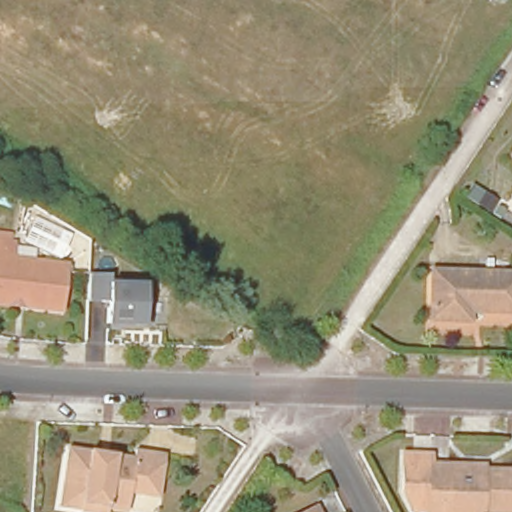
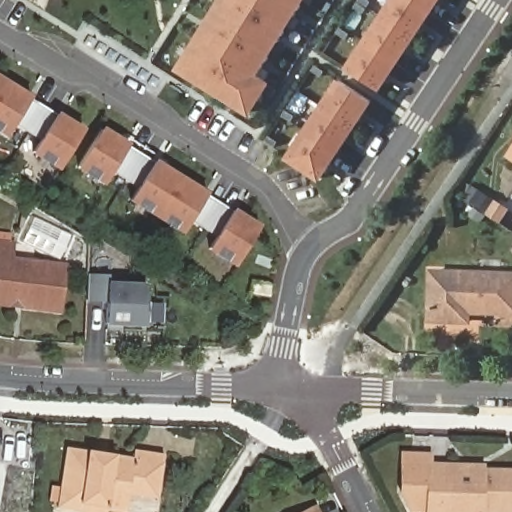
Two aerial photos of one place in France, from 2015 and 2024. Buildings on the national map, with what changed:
new [(258,74),(272,83),(250,117),(175,70),(220,0),(305,0),(258,74)]
new [(346,69),(392,0),(441,0),(424,25),(380,91),(346,69)]
new [(31,154),(40,141),(15,126),(6,139),(0,135),(0,76),(85,128),(60,172),(31,154)]
new [(286,159),(339,80),(373,102),(320,181),(286,159)]
new [(235,268),(207,251),(216,236),(191,221),(182,235),(129,202),(137,189),(112,173),(104,186),(77,169),(105,128),(260,226),(235,268)]
unchanged [(512,151),(512,154),(510,153),(512,151)]
unchanged [(0,239),(7,239),(6,257),(59,262),(55,312),(0,308),(0,239)]
unchanged [(465,315),(428,313),(430,265),(507,269),(505,307),(465,305),(465,315)]
unchanged [(107,324),(106,302),(87,300),(88,273),(110,275),(110,282),(147,284),(145,327),(107,324)]
unchanged [(122,492),(120,504),(101,503),(101,506),(78,505),(76,509),(55,507),(60,449),(124,455),(125,450),(156,453),(153,479),(151,494),(122,492)]
unchanged [(413,507),(398,495),(400,459),(432,461),(432,469),(453,470),(481,472),(481,476),(512,478),(512,512),(430,512),(430,507),(413,507)]
unchanged [(297,512),(293,512),(296,510),(297,512)]

